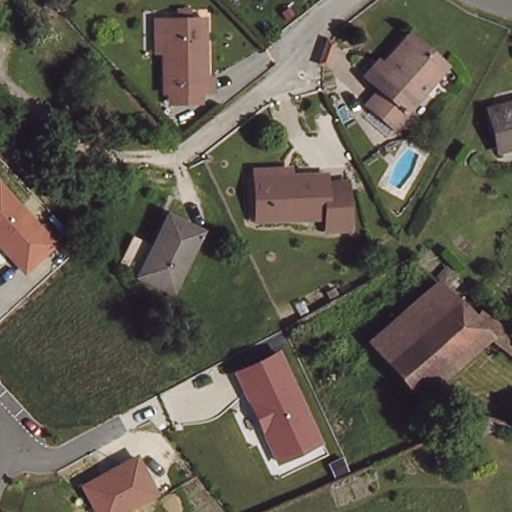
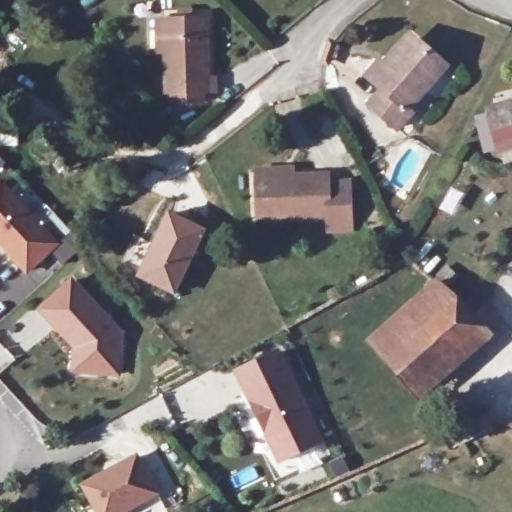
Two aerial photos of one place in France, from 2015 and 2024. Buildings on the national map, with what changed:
unchanged [(168,101),(169,88),(165,88),(167,15),(207,16),(206,86),(202,86),(203,101),(168,101)]
unchanged [(410,99),(413,104),(399,118),(376,94),(390,80),(382,71),(375,63),(387,49),(395,58),(424,30),(452,60),(410,99)]
unchanged [(492,108),(512,104),(512,141),(500,144),(492,108)]
unchanged [(330,182),(352,182),(353,198),(354,230),(332,229),(330,219),(258,220),(258,175),(258,166),(295,165),(295,175),(330,174),(330,182)]
unchanged [(56,242),(27,271),(0,242),(0,184),(56,242)]
unchanged [(203,225),(171,286),(140,268),(168,206),(203,225)]
new [(71,277),(123,334),(120,378),(70,373),(71,349),(35,309),(71,277)]
unchanged [(453,292),(466,303),(496,326),(417,393),(371,336),(434,277),(453,292)]
unchanged [(323,445),(277,464),(235,374),(280,352),(323,445)]
unchanged [(128,462),(147,498),(121,512),(87,512),(75,490),(128,462)]

